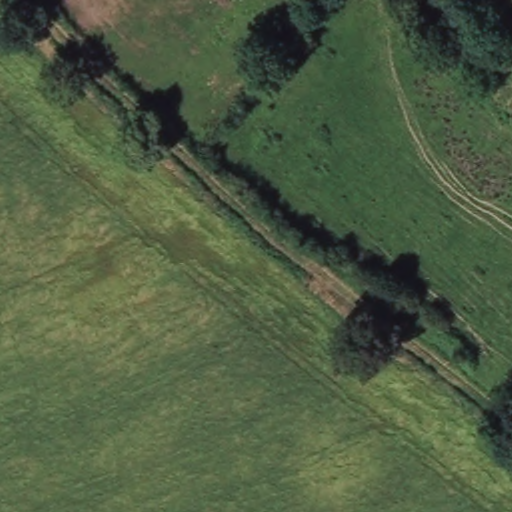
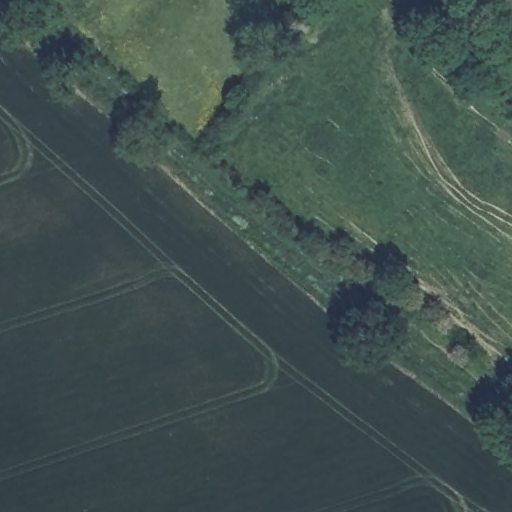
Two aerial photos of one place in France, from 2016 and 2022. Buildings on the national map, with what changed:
[]

